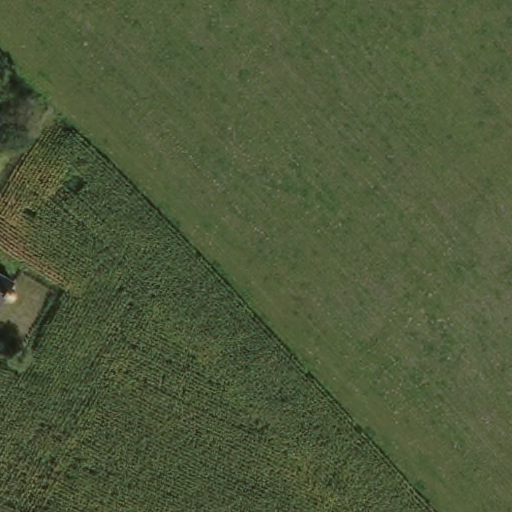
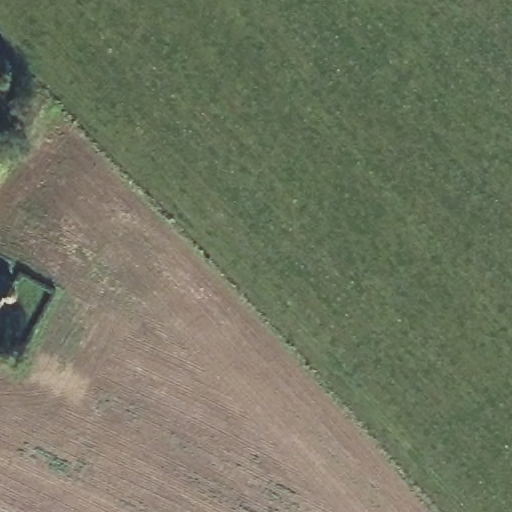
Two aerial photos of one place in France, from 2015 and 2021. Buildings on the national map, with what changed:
unchanged [(0,288),(0,278),(4,281),(0,288)]

